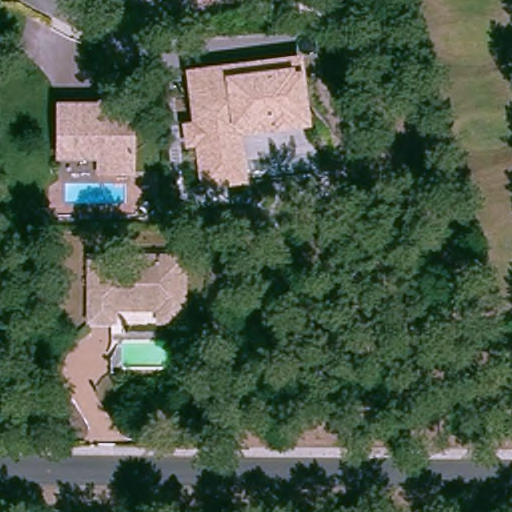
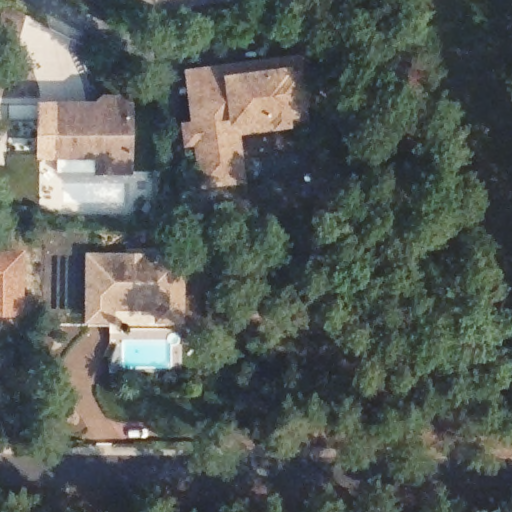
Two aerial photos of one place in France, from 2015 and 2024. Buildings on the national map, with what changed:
unchanged [(301,52),(312,126),(243,135),(248,181),(200,189),(194,147),(185,148),(181,122),(190,120),(185,68),(301,52)]
unchanged [(89,105),(89,102),(95,96),(110,96),(116,102),(116,105),(121,105),(121,172),(88,172),(88,156),(48,156),(49,104),(89,105)]
unchanged [(184,248),(184,324),(152,324),(152,306),(111,305),(111,324),(83,322),(82,249),(184,248)]
new [(25,317),(0,316),(0,249),(25,250),(25,317)]

